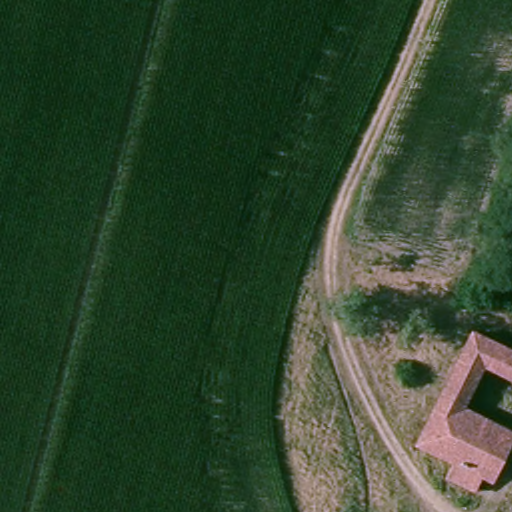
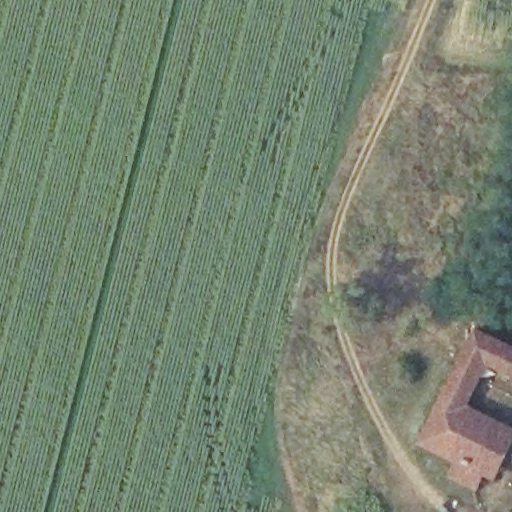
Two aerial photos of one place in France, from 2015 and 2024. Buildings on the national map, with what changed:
unchanged [(512,343),(512,370),(490,360),(470,404),(512,424),(512,444),(499,470),(492,468),(485,484),(456,472),(462,457),(422,437),(476,325),(485,330),(512,343)]

